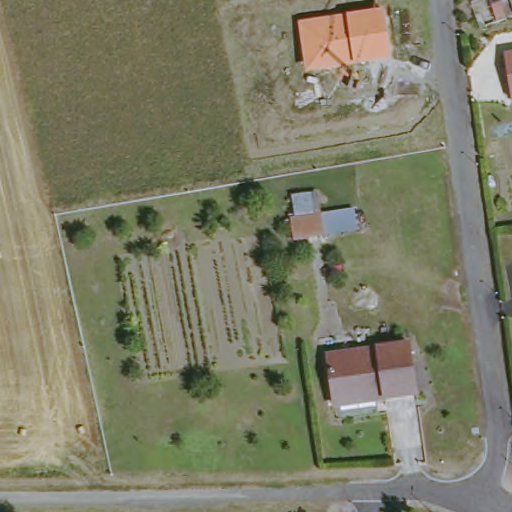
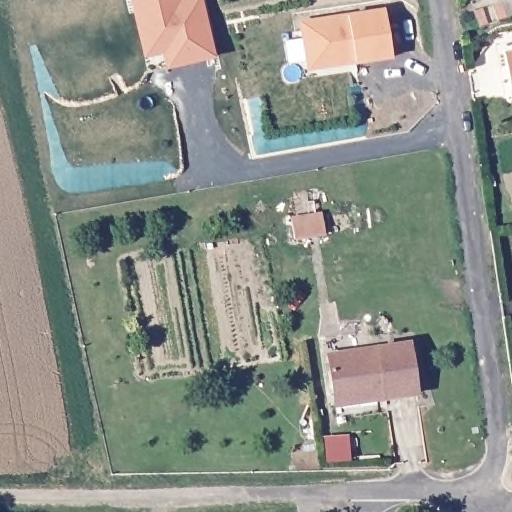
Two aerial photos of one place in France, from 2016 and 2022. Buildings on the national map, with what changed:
new [(147,73),(143,59),(131,0),(203,0),(216,60),(166,69),(147,73)]
new [(512,0),(512,15),(496,20),(492,5),(505,0),(512,0)]
unchanged [(382,9),(390,60),(307,72),(298,21),(382,9)]
unchanged [(504,54),(512,52),(512,92),(504,54)]
unchanged [(299,246),(299,197),(325,194),(327,215),(362,212),(366,235),(299,246)]
unchanged [(337,394),(331,355),(414,343),(422,395),(390,399),(338,406),(337,394)]

